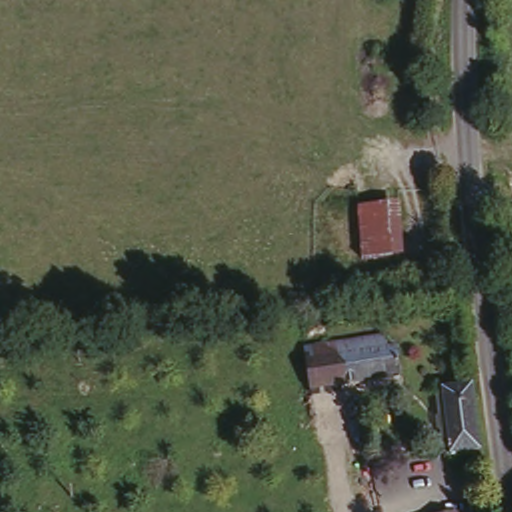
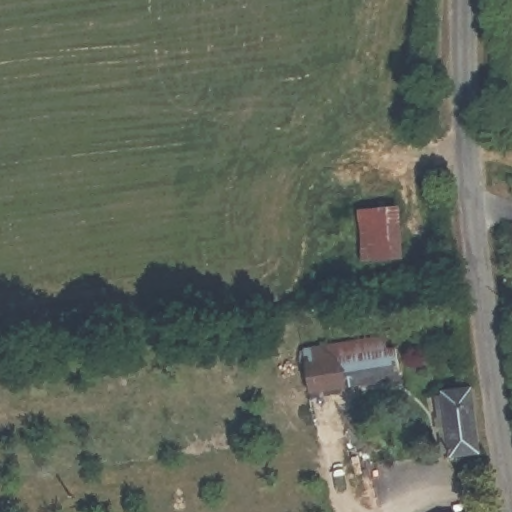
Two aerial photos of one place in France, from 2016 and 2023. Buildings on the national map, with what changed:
unchanged [(394,211),(395,261),(358,262),(357,212),(394,211)]
unchanged [(305,400),(300,353),(386,343),(390,354),(408,352),(411,384),(305,400)]
unchanged [(487,455),(445,460),(438,401),(477,395),(487,455)]

